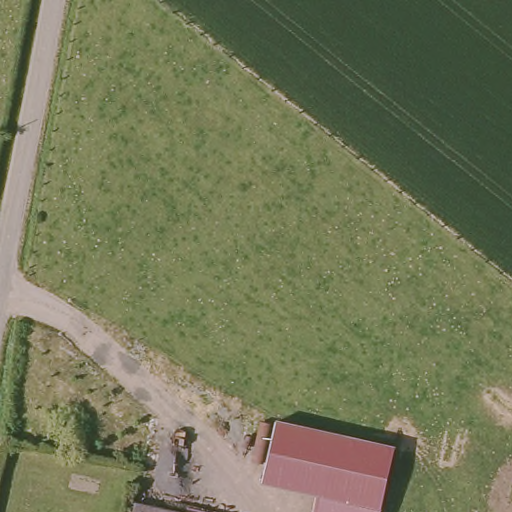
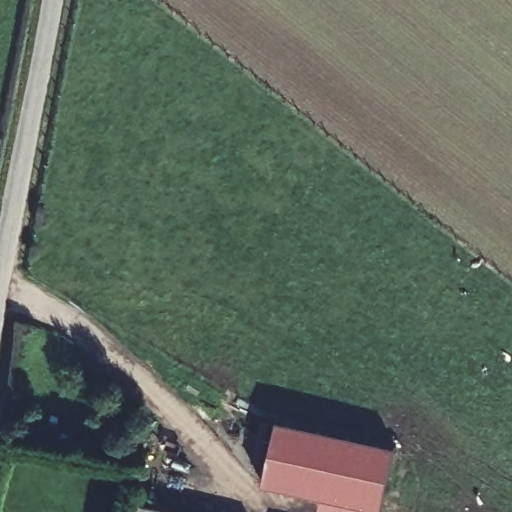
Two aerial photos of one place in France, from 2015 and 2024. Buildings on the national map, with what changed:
unchanged [(280,420),(398,447),(387,507),(266,483),(280,420)]
unchanged [(142,502),(178,512),(139,512),(142,502)]

